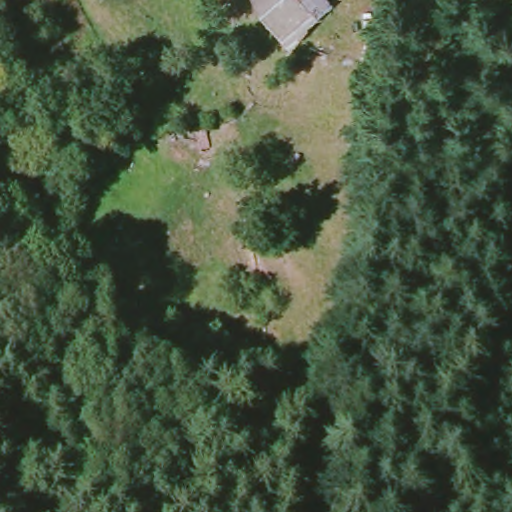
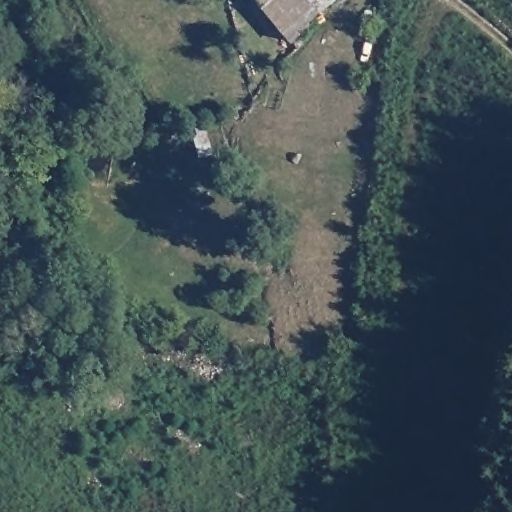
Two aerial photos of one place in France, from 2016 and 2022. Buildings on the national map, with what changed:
unchanged [(287,39),(252,0),(317,0),(319,3),(287,39)]

